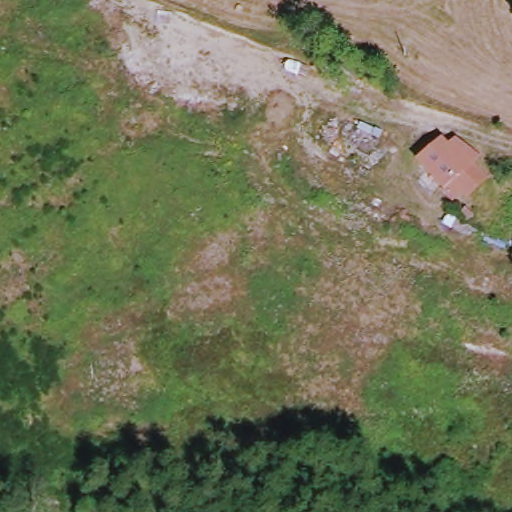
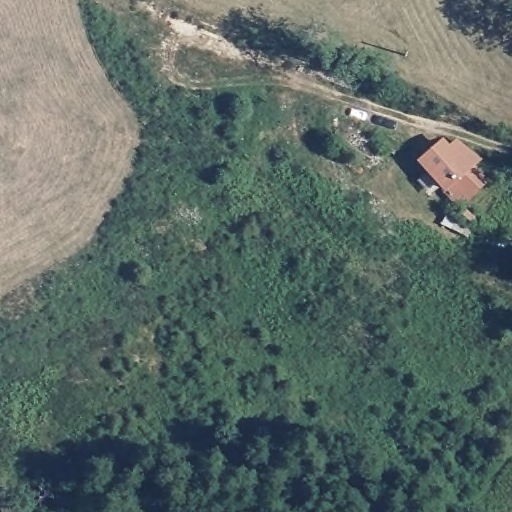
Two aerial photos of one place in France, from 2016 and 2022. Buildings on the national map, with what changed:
unchanged [(449,160),(462,149),(479,171),(476,176),(488,190),(471,206),(465,199),(451,209),(422,173),(441,153),(449,160)]

